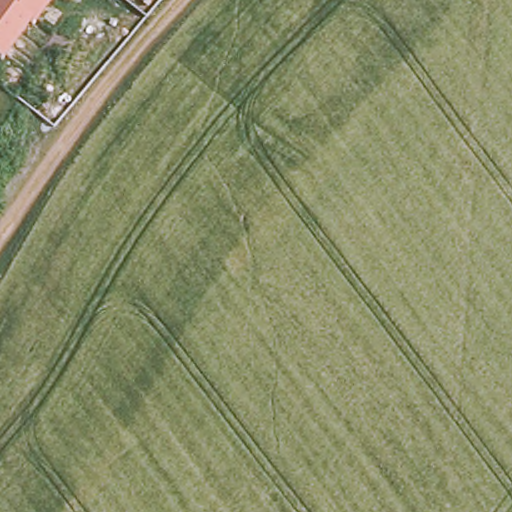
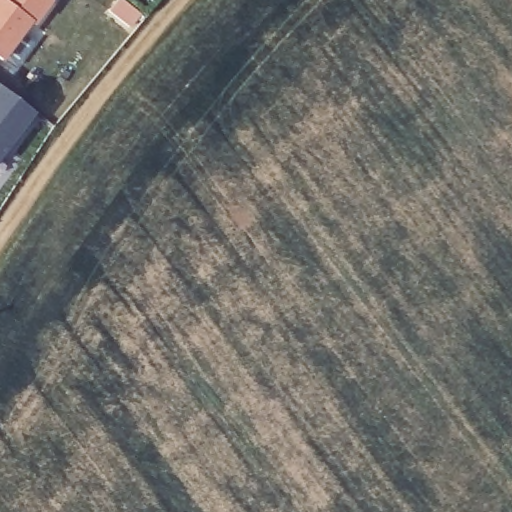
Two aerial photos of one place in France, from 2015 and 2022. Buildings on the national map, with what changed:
unchanged [(55,1),(36,25),(33,23),(5,61),(0,57),(0,0),(54,0),(55,1)]
new [(37,113),(0,160),(0,85),(37,113)]

